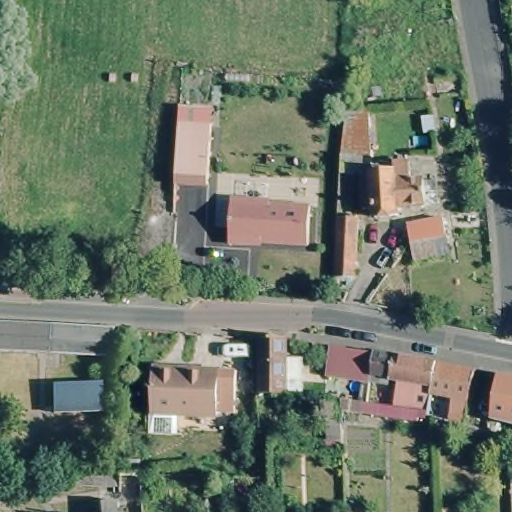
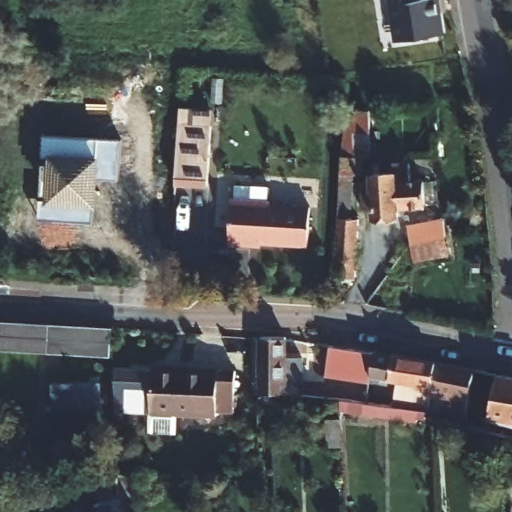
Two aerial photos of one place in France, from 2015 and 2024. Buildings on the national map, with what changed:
new [(437,37),(392,40),(388,0),(433,0),(437,37)]
unchanged [(355,177),(358,178),(359,165),(337,162),(342,114),(364,113),(368,168),(367,168),(367,184),(355,185),(355,177)]
unchanged [(435,114),(437,130),(425,132),(423,115),(435,114)]
unchanged [(180,122),(213,126),(209,186),(177,184),(180,122)]
new [(120,178),(99,175),(96,201),(95,222),(40,218),(41,197),(50,196),(55,154),(44,154),(45,132),(122,138),(120,178)]
unchanged [(359,165),(358,178),(355,177),(348,177),(344,223),(355,224),(350,282),(347,282),(346,287),(332,287),(332,281),(329,281),(337,162),(359,165)]
unchanged [(367,184),(367,168),(368,168),(400,166),(402,185),(429,184),(431,209),(394,212),(394,221),(370,223),(370,214),(357,214),(355,185),(367,184)]
unchanged [(232,237),(232,197),(312,199),(309,242),(232,237)]
unchanged [(445,216),(450,254),(415,260),(409,223),(445,216)]
unchanged [(50,348),(50,350),(0,347),(0,320),(52,323),(50,348)]
unchanged [(116,327),(114,352),(50,348),(52,323),(116,327)]
unchanged [(280,338),(281,363),(299,365),(302,398),(254,393),(255,337),(280,338)]
unchanged [(375,351),(372,380),(332,375),(335,345),(375,351)]
unchanged [(330,399),(331,384),(372,388),(370,404),(396,408),(402,376),(380,372),(385,351),(440,362),(435,399),(434,413),(432,412),(429,421),(423,420),(422,424),(405,421),(372,417),(372,416),(345,411),(345,401),(330,399)]
unchanged [(505,411),(507,399),(499,398),(497,411),(474,407),(470,425),(451,421),(454,402),(435,399),(440,362),(480,368),(480,371),(502,375),(512,377),(512,412),(505,411)]
unchanged [(225,413),(206,413),(206,416),(140,416),(140,376),(140,371),(168,371),(225,372),(225,413)]
unchanged [(98,382),(99,410),(52,411),(50,383),(98,382)]
unchanged [(330,420),(345,419),(347,448),(332,447),(330,420)]
unchanged [(510,436),(512,428),(512,437),(510,436)]
unchanged [(143,495),(122,495),(122,486),(74,485),(75,472),(122,473),(142,473),(143,495)]
unchanged [(123,500),(124,512),(104,512),(104,501),(123,500)]

